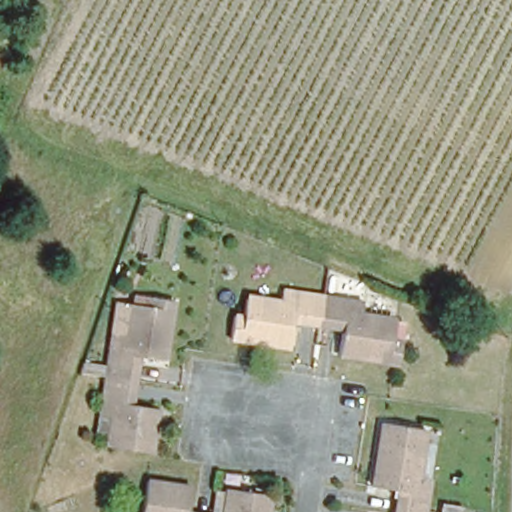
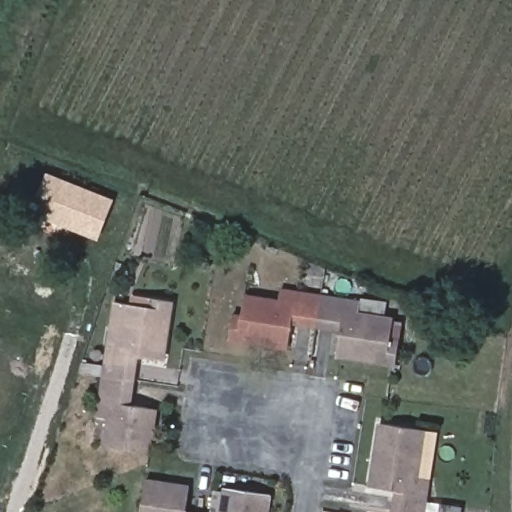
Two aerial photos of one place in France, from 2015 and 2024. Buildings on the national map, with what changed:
new [(40,217),(45,205),(36,201),(47,174),(114,200),(98,239),(40,217)]
unchanged [(290,325),(287,352),(227,343),(230,320),(240,322),(242,303),(275,308),(277,292),(318,298),(313,327),(290,325)]
unchanged [(102,373),(107,336),(123,338),(127,306),(146,307),(147,297),(171,302),(163,354),(136,350),(133,377),(102,373)]
unchanged [(318,298),(357,304),(355,319),(390,325),(388,342),(398,343),(396,366),(336,359),(340,331),(313,327),(318,298)]
unchanged [(130,400),(155,405),(149,453),(125,451),(126,440),(109,437),(114,403),(99,402),(102,373),(133,377),(130,400)]
unchanged [(399,491),(371,487),(380,424),(421,431),(415,477),(429,479),(424,512),(396,512),(399,491)]
unchanged [(145,482),(190,487),(187,512),(142,512),(145,482)]
unchanged [(230,487),(270,493),(267,512),(227,512),(230,487)]

